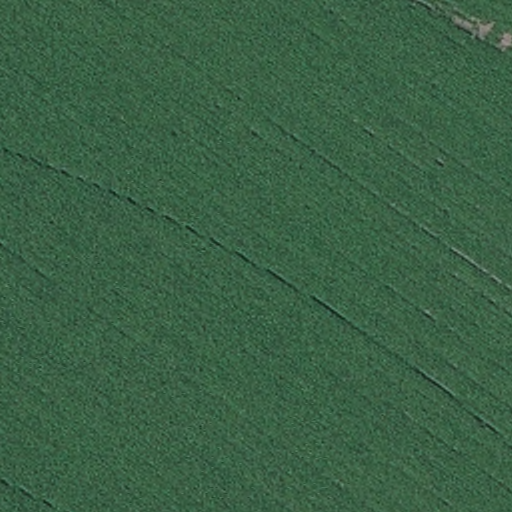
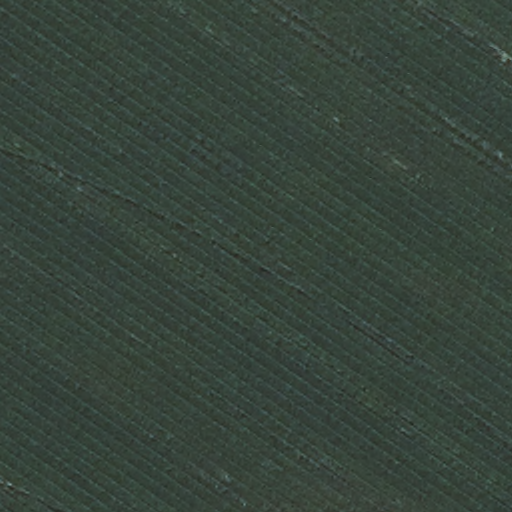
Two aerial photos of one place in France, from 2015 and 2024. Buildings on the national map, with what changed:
[]

